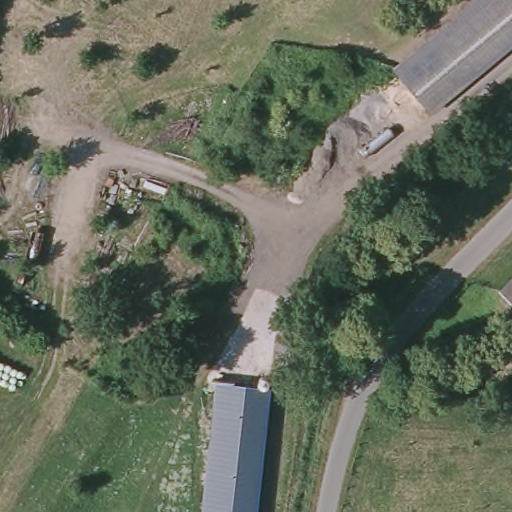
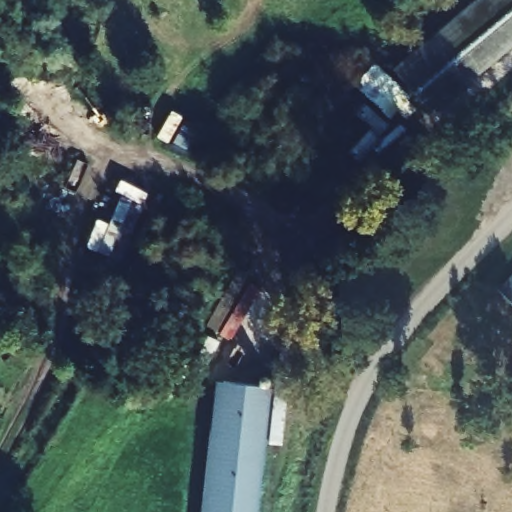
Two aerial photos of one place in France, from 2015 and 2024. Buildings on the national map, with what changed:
unchanged [(473,0),(512,0),(512,39),(431,109),(395,65),(473,0)]
unchanged [(495,294),(512,275),(512,310),(495,294)]
unchanged [(450,314),(496,314),(495,349),(445,349),(450,314)]
unchanged [(217,383),(265,388),(252,512),(203,512),(217,383)]

